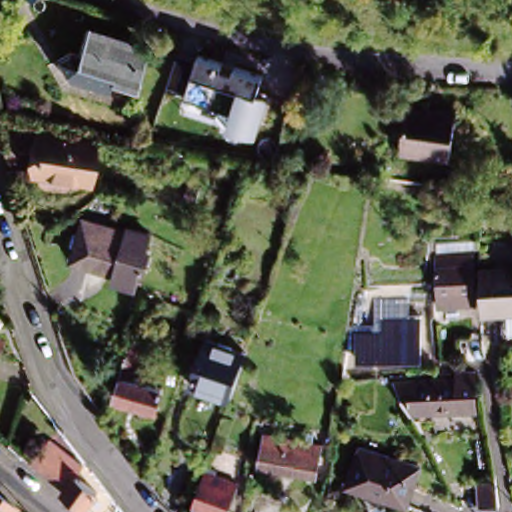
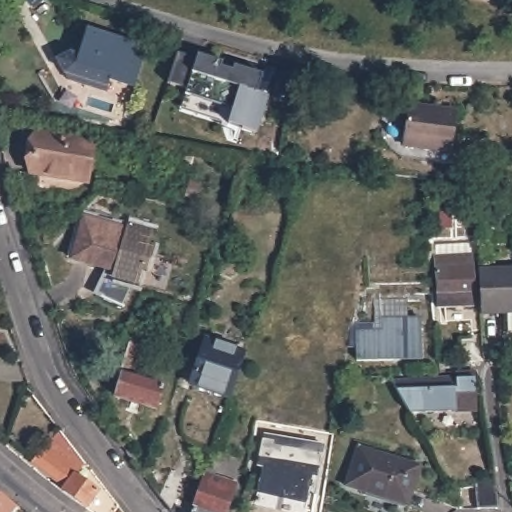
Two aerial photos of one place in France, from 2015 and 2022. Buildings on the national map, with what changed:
unchanged [(0,2),(0,0),(2,0),(0,2)]
unchanged [(30,11),(6,0),(39,0),(30,11)]
unchanged [(86,89),(88,82),(57,73),(50,57),(62,49),(77,54),(85,27),(143,46),(133,84),(104,76),(100,92),(86,89)]
unchanged [(194,66),(198,53),(262,71),(256,92),(268,99),(255,137),(179,113),(183,96),(185,92),(167,88),(175,57),(194,66)]
unchanged [(449,156),(400,151),(406,107),(455,112),(449,156)]
unchanged [(90,143),(84,184),(25,175),(31,132),(90,143)]
unchanged [(153,229),(137,287),(106,281),(110,269),(66,260),(80,210),(153,229)]
unchanged [(475,309),(435,311),(433,256),(473,253),(475,309)]
unchanged [(512,270),(512,314),(480,317),(479,273),(512,270)]
unchanged [(423,361),(393,360),(395,366),(359,365),(359,351),(351,350),(351,329),(375,329),(375,322),(374,302),(407,302),(407,322),(421,322),(423,361)]
unchanged [(155,407),(114,394),(120,373),(131,337),(140,340),(127,376),(161,387),(155,407)]
unchanged [(225,401),(186,387),(202,342),(241,357),(225,401)]
unchanged [(455,382),(455,375),(474,374),(475,414),(409,416),(392,382),(455,382)]
unchanged [(320,442),(315,475),(256,466),(261,433),(320,442)]
unchanged [(64,489),(36,469),(30,465),(41,449),(48,438),(55,444),(80,467),(73,476),(97,494),(102,487),(117,508),(115,512),(87,512),(84,510),(60,493),(64,489)]
unchanged [(417,464),(405,506),(343,487),(356,446),(417,464)]
unchanged [(217,471),(239,478),(230,506),(227,512),(192,512),(196,500),(210,460),(220,462),(217,471)]
unchanged [(166,467),(183,473),(172,512),(158,495),(166,467)]
unchanged [(492,475),(496,506),(475,507),(471,476),(492,475)]
unchanged [(0,512),(0,502),(13,512),(0,512)]

